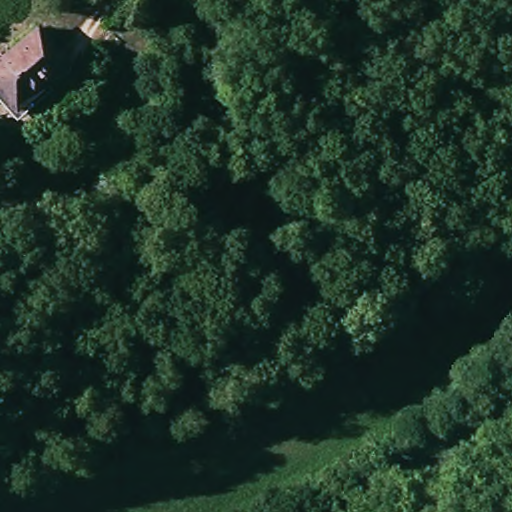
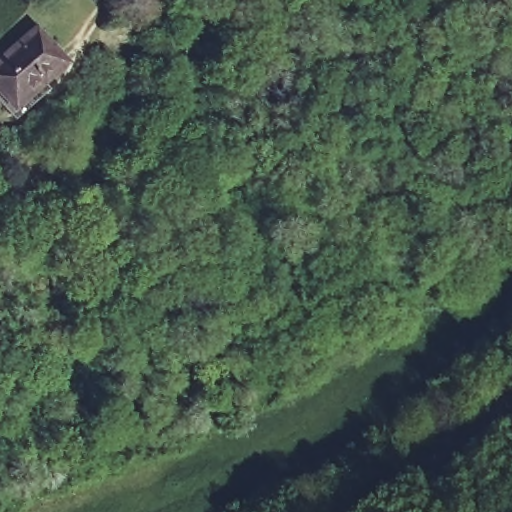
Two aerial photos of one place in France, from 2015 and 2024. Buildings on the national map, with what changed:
unchanged [(72,62),(19,107),(0,85),(0,74),(48,33),(72,62)]

